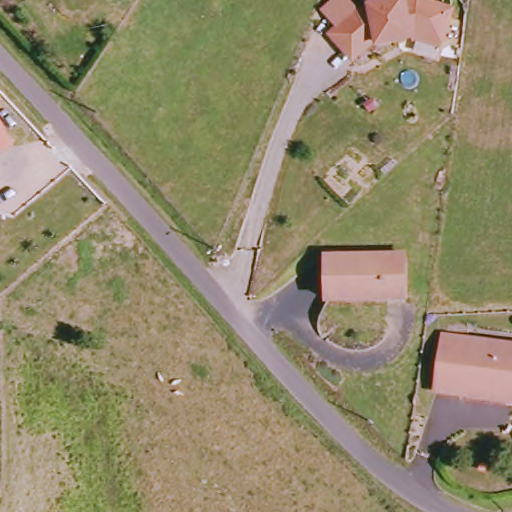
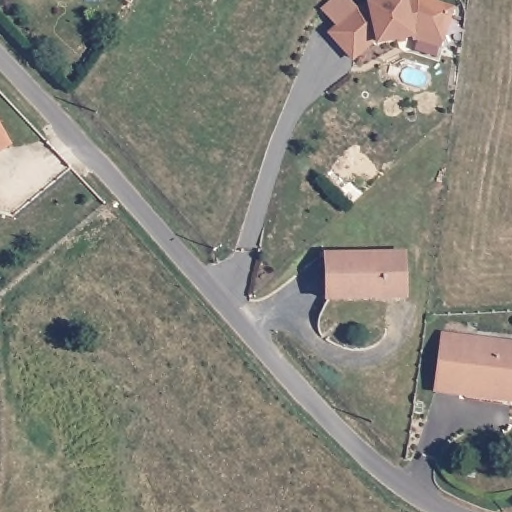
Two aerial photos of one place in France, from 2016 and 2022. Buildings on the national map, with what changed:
unchanged [(373,45),(371,41),(367,44),(366,70),(333,68),(335,33),(347,26),(346,24),(398,0),(406,0),(426,0),(448,15),(429,41),(426,46),(405,32),(373,45)]
unchanged [(0,155),(0,130),(11,148),(0,155)]
unchanged [(408,256),(410,302),(334,303),(333,259),(408,256)]
unchanged [(444,393),(449,338),(512,345),(512,400),(510,400),(469,396),(444,393)]

